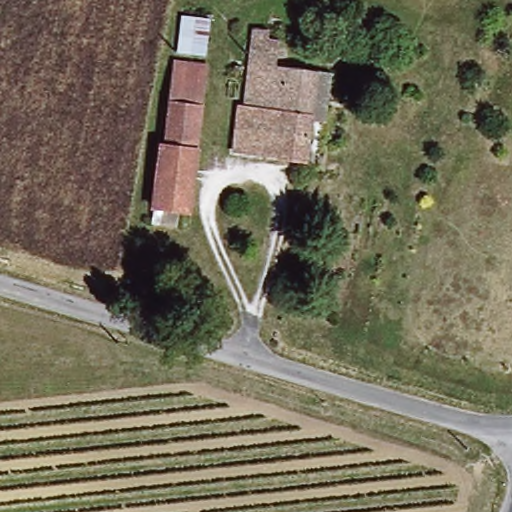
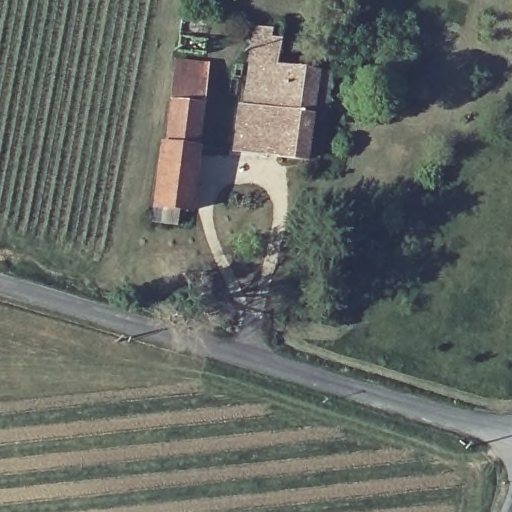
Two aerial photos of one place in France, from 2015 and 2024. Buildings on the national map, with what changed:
unchanged [(303,160),(232,151),(237,107),(243,107),(253,27),(268,29),(267,40),(279,42),(276,65),(313,69),(303,160)]
unchanged [(175,59),(203,62),(194,142),(168,139),(175,59)]
unchanged [(153,205),(160,145),(194,149),(186,209),(153,205)]

